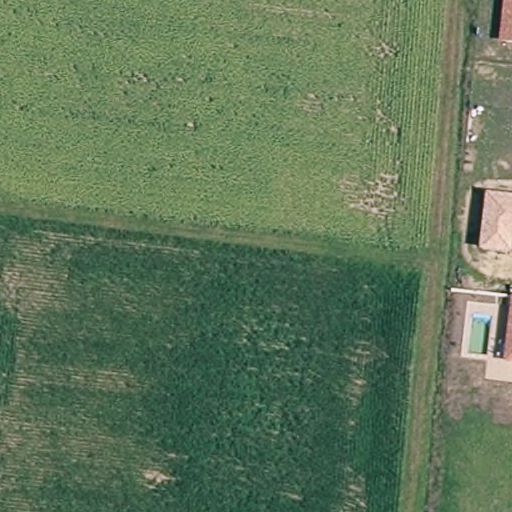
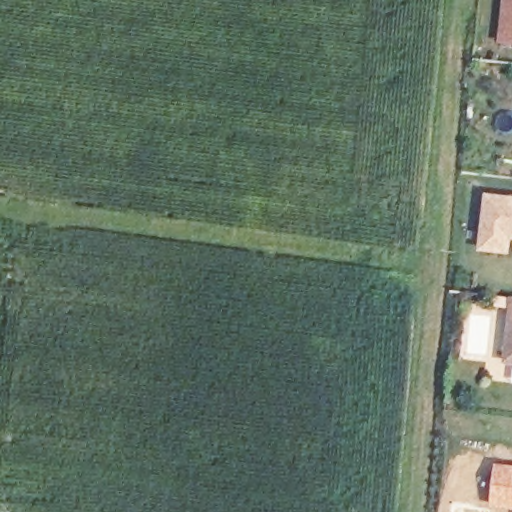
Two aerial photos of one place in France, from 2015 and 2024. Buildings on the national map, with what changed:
unchanged [(499,43),(504,0),(512,0),(512,45),(499,43)]
unchanged [(511,256),(479,253),(485,194),(512,197),(512,253),(511,256)]
unchanged [(504,363),(511,298),(512,298),(512,364),(504,363)]
new [(496,464),(512,466),(512,511),(490,508),(496,464)]

